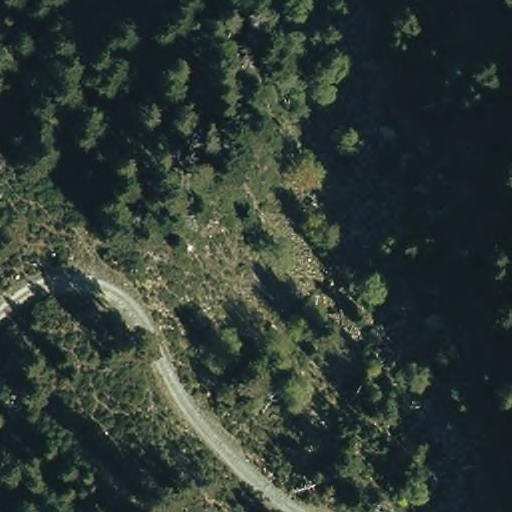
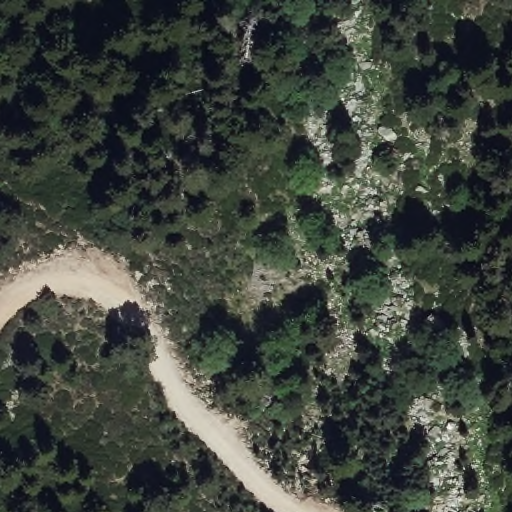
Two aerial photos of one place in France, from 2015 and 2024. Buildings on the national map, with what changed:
[]

